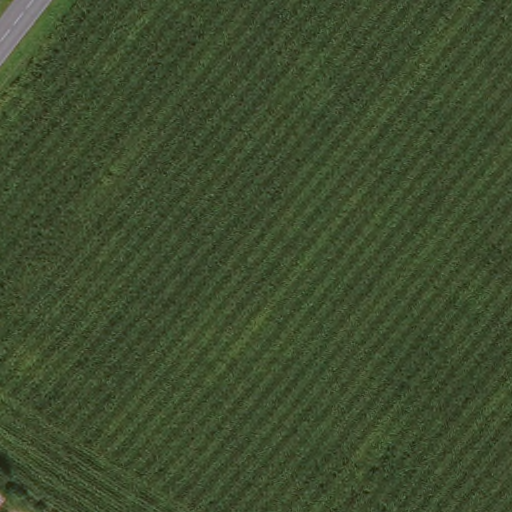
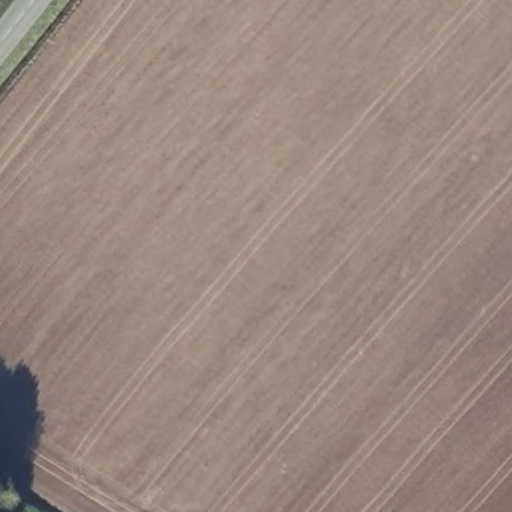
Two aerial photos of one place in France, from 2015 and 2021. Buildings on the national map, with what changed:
unchanged [(0,512),(0,494),(10,500),(3,512),(0,512)]

